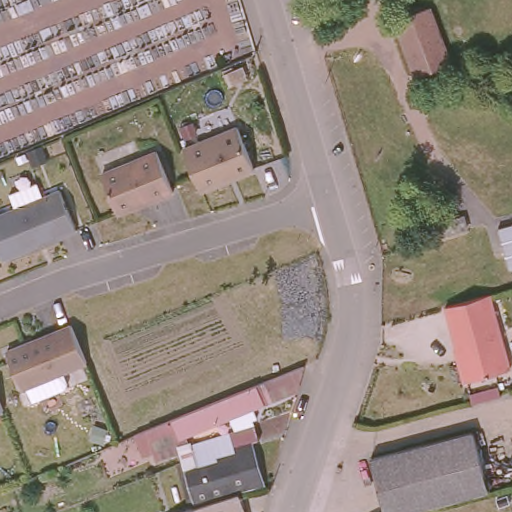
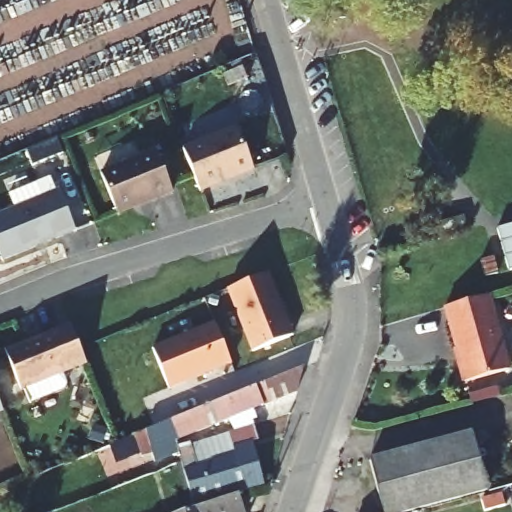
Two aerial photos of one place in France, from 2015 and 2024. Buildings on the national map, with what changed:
demolished [(397,20),(433,7),(452,66),(414,76),(397,20)]
unchanged [(236,178),(236,177),(233,176),(227,179),(226,181),(226,182),(200,192),(182,151),(236,129),(254,171),(236,178)]
unchanged [(146,202),(147,202),(117,214),(101,174),(156,152),(172,192),(146,202)]
unchanged [(0,216),(59,192),(76,231),(2,262),(0,256),(0,216)]
new [(512,226),(512,268),(508,270),(498,231),(512,226)]
new [(270,271),(295,335),(253,351),(227,288),(270,271)]
unchanged [(506,368),(461,381),(458,372),(440,306),(485,293),(503,360),(506,368)]
new [(214,323),(230,364),(169,389),(152,348),(214,323)]
unchanged [(81,350),(86,364),(21,391),(6,353),(32,342),(33,343),(35,345),(42,342),(42,340),(42,339),(71,327),(81,350)]
unchanged [(178,453),(154,462),(151,453),(141,457),(134,437),(168,422),(222,401),(234,396),(276,378),(304,367),(298,392),(252,410),(256,418),(252,420),(255,425),(259,440),(251,442),(263,482),(229,492),(229,495),(193,505),(182,466),(180,461),(178,453)]
unchanged [(0,407),(2,412),(0,412),(0,407)]
unchanged [(469,431),(487,491),(411,512),(383,512),(369,458),(469,431)]
unchanged [(202,506),(239,493),(244,512),(194,512),(202,511),(202,506)]

